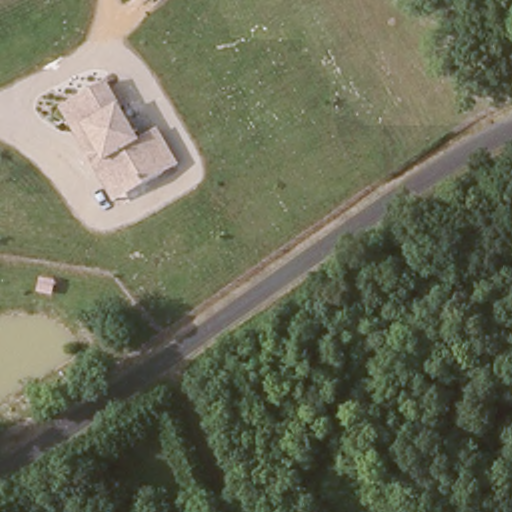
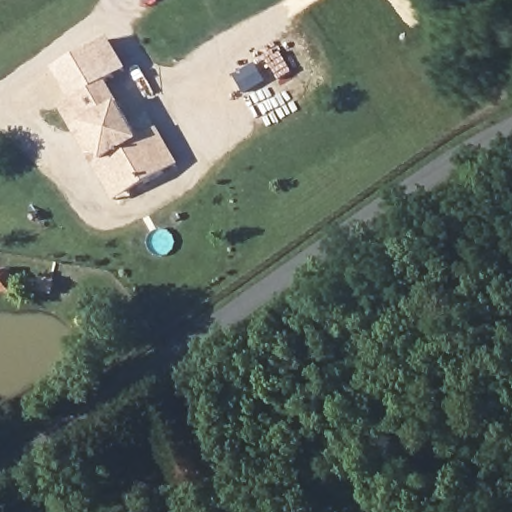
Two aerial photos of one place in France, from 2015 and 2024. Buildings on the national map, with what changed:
new [(110,81),(72,101),(56,69),(109,38),(128,71),(110,81)]
unchanged [(115,204),(61,108),(110,81),(140,134),(156,125),(176,165),(115,204)]

